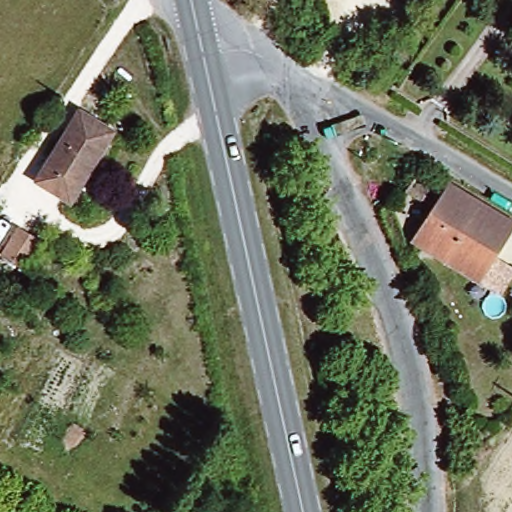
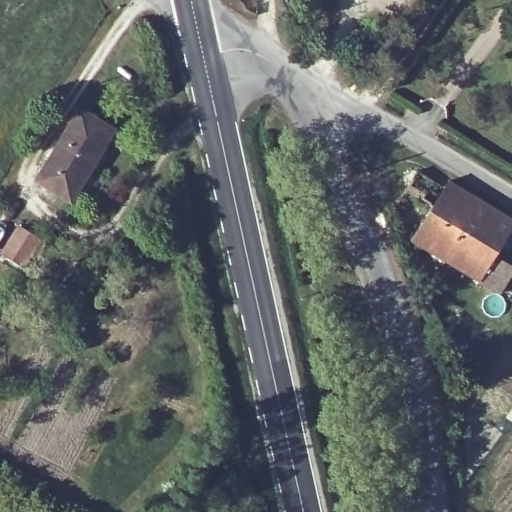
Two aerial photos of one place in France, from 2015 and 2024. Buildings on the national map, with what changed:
unchanged [(112,134),(72,196),(37,174),(76,111),(112,134)]
unchanged [(412,245),(427,218),(394,199),(410,171),(441,188),(447,180),(512,218),(512,219),(495,248),(512,257),(512,271),(500,293),(476,280),(412,245)]

